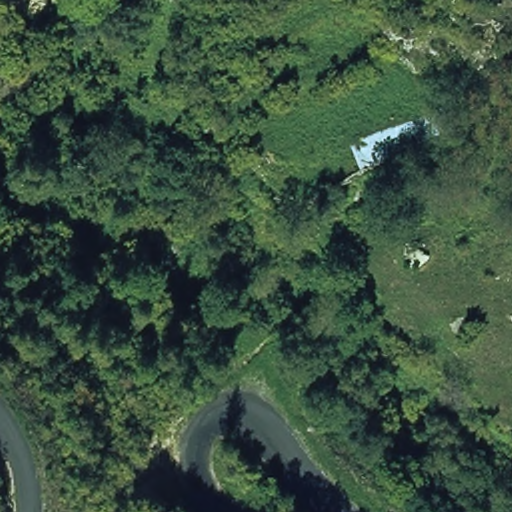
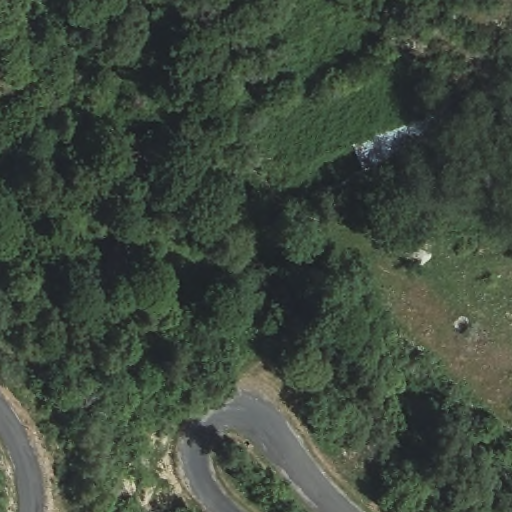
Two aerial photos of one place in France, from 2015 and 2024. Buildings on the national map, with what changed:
unchanged [(350,145),(420,116),(426,135),(364,169),(350,145)]

